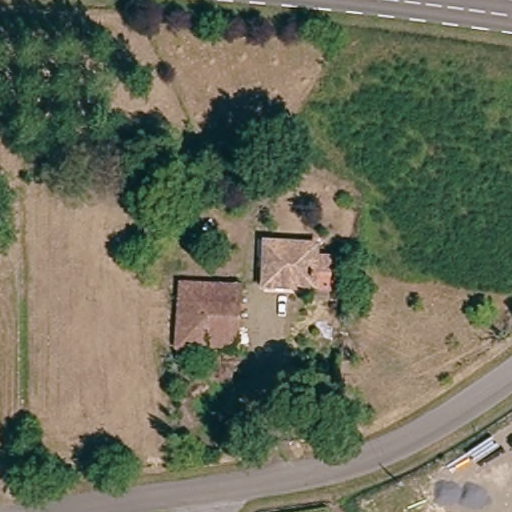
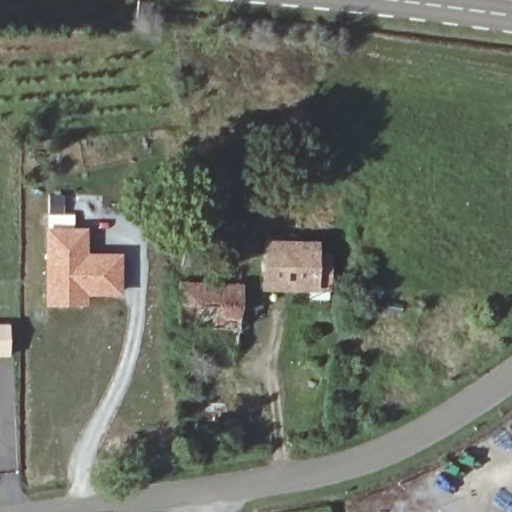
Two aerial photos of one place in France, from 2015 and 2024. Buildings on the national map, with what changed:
new [(49,192),(65,192),(65,212),(75,212),(75,225),(89,226),(89,250),(124,251),(123,295),(89,295),(88,305),(45,305),(49,192)]
unchanged [(319,244),(319,257),(332,258),(331,289),(265,286),(266,242),(319,244)]
unchanged [(242,287),(239,350),(177,347),(179,285),(242,287)]
new [(0,360),(0,326),(9,326),(9,360),(0,360)]

